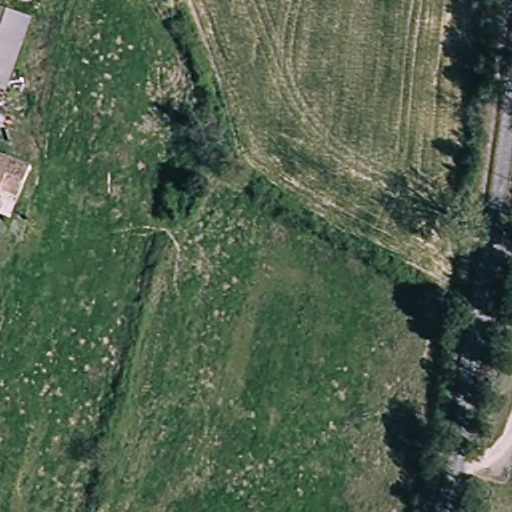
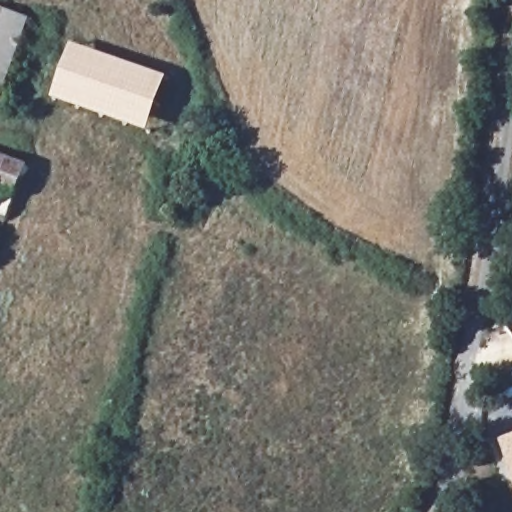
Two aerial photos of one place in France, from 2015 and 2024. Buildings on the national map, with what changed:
unchanged [(0,92),(0,8),(28,17),(1,92),(0,92)]
new [(150,134),(54,100),(72,47),(170,80),(150,134)]
unchanged [(6,223),(0,221),(0,163),(23,171),(6,223)]
new [(503,446),(512,444),(512,474),(503,446)]

